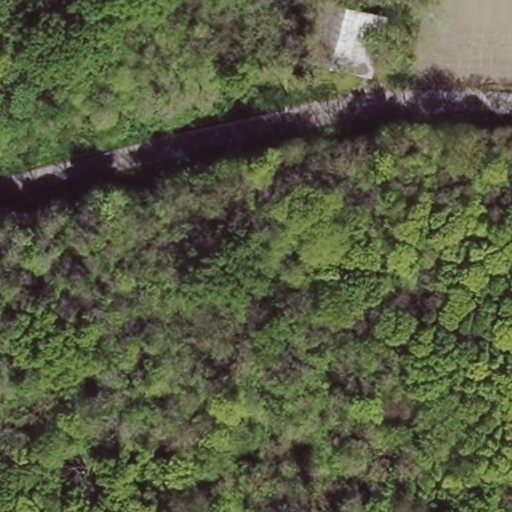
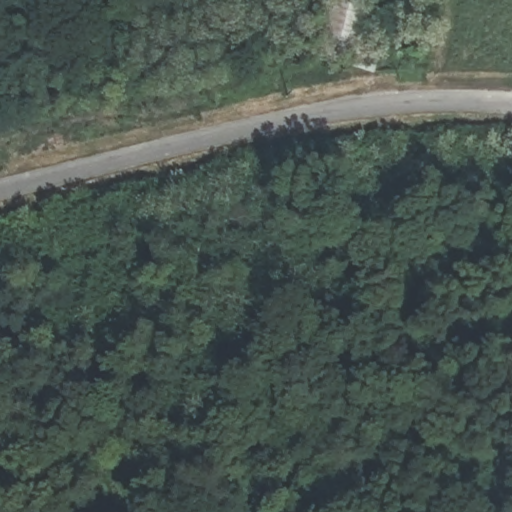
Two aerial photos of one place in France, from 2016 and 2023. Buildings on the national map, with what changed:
unchanged [(310,0),(332,0),(371,7),(361,62),(301,50),(310,0)]

